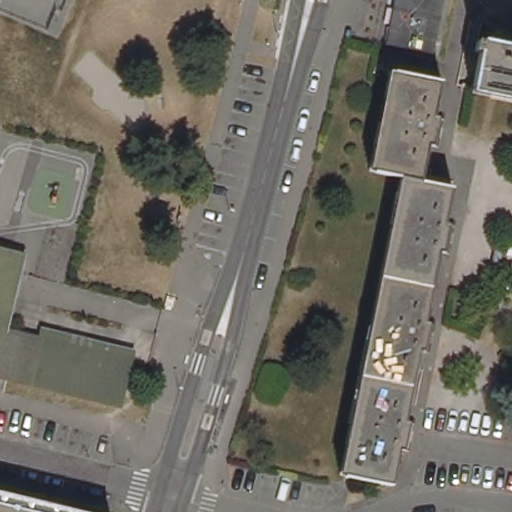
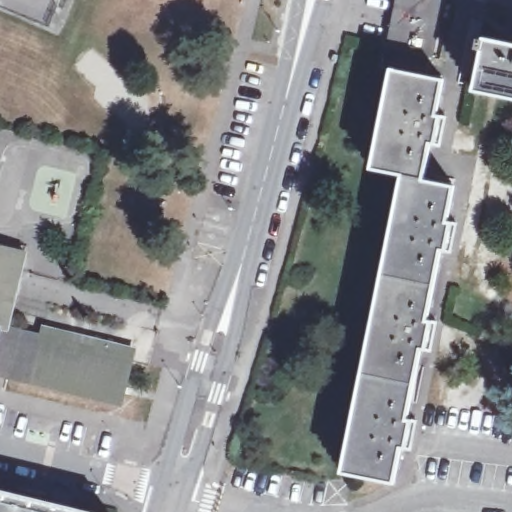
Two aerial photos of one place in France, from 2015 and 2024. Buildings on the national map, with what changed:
unchanged [(396,0),(445,0),(445,2),(435,56),(430,55),(425,74),(395,70),(382,67),(396,0)]
unchanged [(482,56),(476,55),(478,46),(483,47),(484,45),(512,50),(512,98),(475,90),(482,56)]
unchanged [(406,177),(375,170),(395,70),(425,74),(425,76),(443,79),(435,115),(445,117),(440,146),(430,145),(423,180),(453,187),(446,222),(455,224),(450,251),(440,250),(426,321),(435,323),(429,350),(420,348),(406,420),(414,422),(408,449),(400,447),(393,482),(346,472),(406,177)]
unchanged [(25,255),(7,328),(87,348),(91,337),(122,344),(137,348),(134,360),(124,403),(0,375),(0,248),(25,255)]
unchanged [(81,512),(0,512),(0,492),(52,505),(55,495),(74,500),(71,510),(81,512)]

